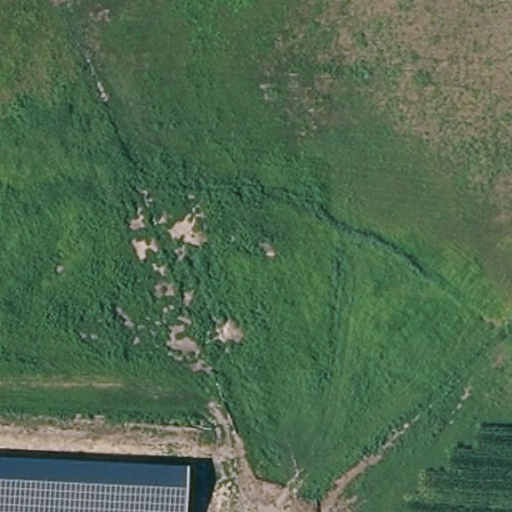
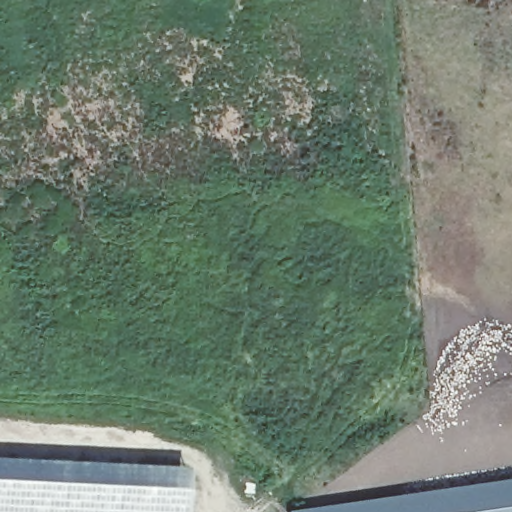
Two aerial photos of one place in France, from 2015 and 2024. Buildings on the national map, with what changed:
unchanged [(187,466),(186,512),(0,512),(0,458),(187,466)]
new [(512,476),(512,512),(289,512),(288,508),(477,480),(512,476)]

